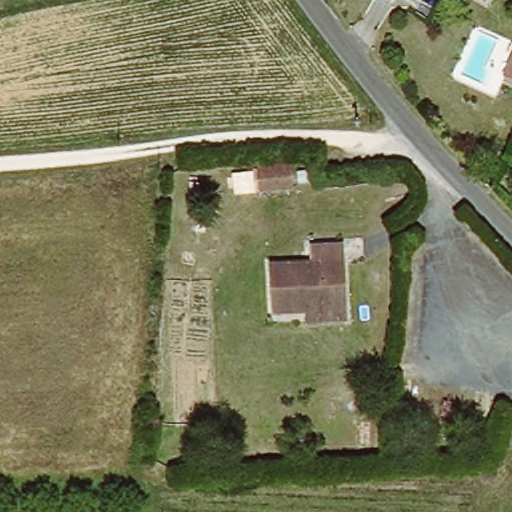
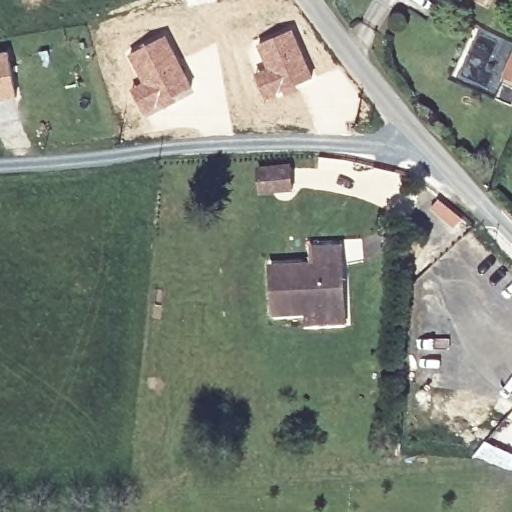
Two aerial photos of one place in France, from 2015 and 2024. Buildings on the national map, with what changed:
unchanged [(480,5),(472,0),(483,0),(480,5)]
new [(266,69),(256,44),(293,28),(313,77),(296,85),(297,90),(265,102),(254,74),(266,69)]
new [(166,34),(193,90),(144,117),(129,89),(141,81),(127,55),(166,34)]
new [(17,95),(0,98),(0,54),(10,52),(17,95)]
unchanged [(504,57),(512,61),(512,74),(504,91),(491,85),(504,57)]
new [(291,162),(293,191),(257,195),(255,166),(291,162)]
unchanged [(303,311),(267,311),(268,267),(310,268),(312,245),(342,246),(340,311),(341,323),(302,325),(303,311)]

